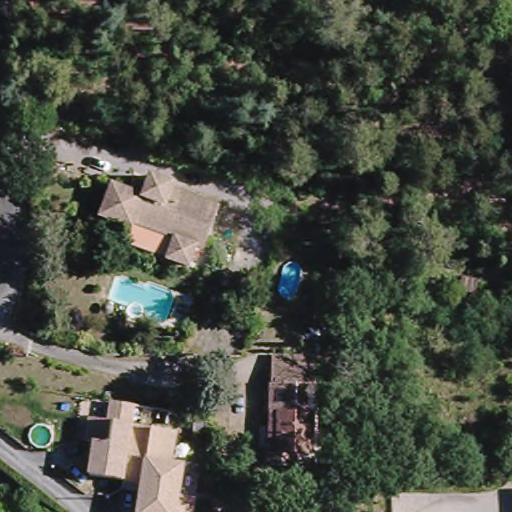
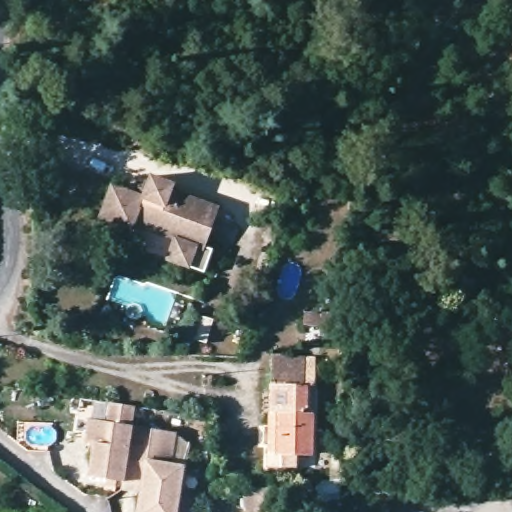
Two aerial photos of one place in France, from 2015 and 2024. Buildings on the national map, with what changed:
unchanged [(141,226),(136,234),(113,223),(101,218),(108,199),(113,183),(132,190),(141,165),(156,171),(176,178),(174,188),(221,206),(201,267),(174,259),(181,239),(141,226)]
unchanged [(171,268),(131,254),(136,234),(141,226),(181,239),(174,259),(171,268)]
unchanged [(445,294),(424,292),(425,275),(444,275),(445,294)]
unchanged [(360,330),(342,329),(317,328),(317,319),(341,319),(357,320),(360,330)]
unchanged [(276,386),(276,364),(308,365),(308,388),(318,389),(318,461),(284,460),(275,459),(276,386)]
unchanged [(128,438),(146,440),(148,431),(174,435),(168,466),(182,469),(176,512),(131,512),(134,487),(84,480),(89,441),(99,442),(105,404),(134,407),(128,438)]

